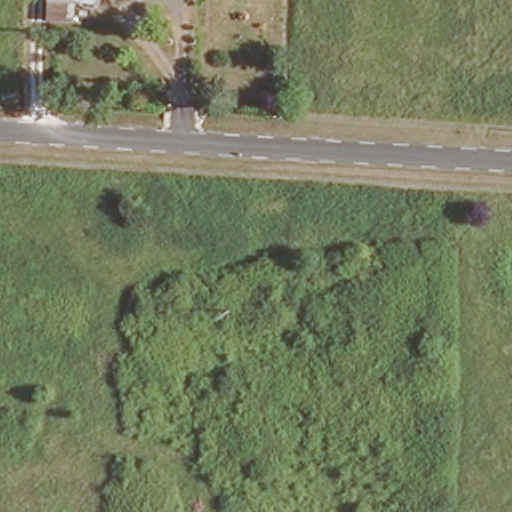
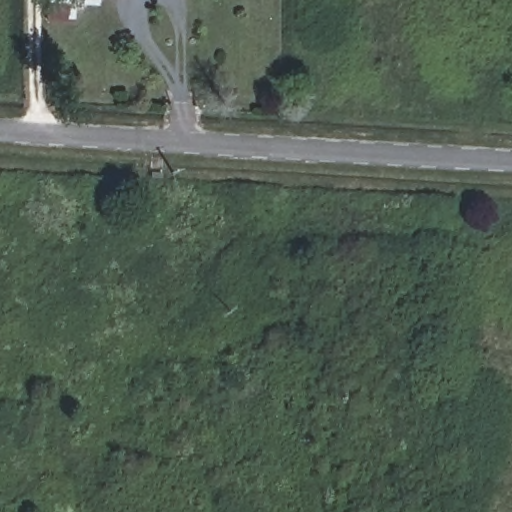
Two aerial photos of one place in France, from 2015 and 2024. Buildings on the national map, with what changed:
unchanged [(50,26),(44,26),(44,0),(76,0),(75,26),(50,26)]

